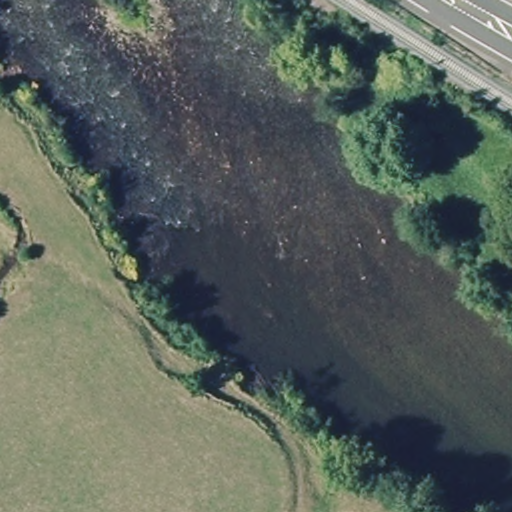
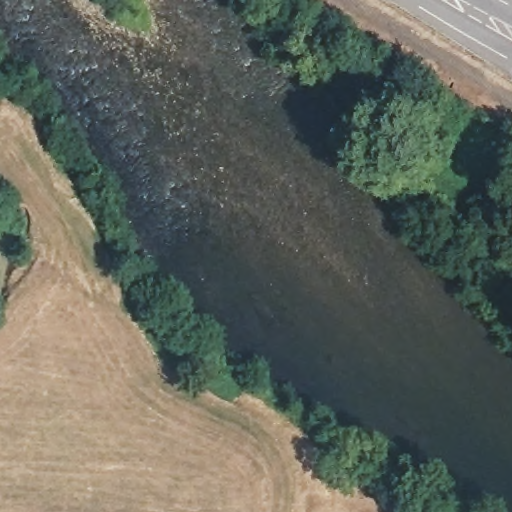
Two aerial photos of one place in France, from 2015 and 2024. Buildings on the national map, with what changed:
[]

